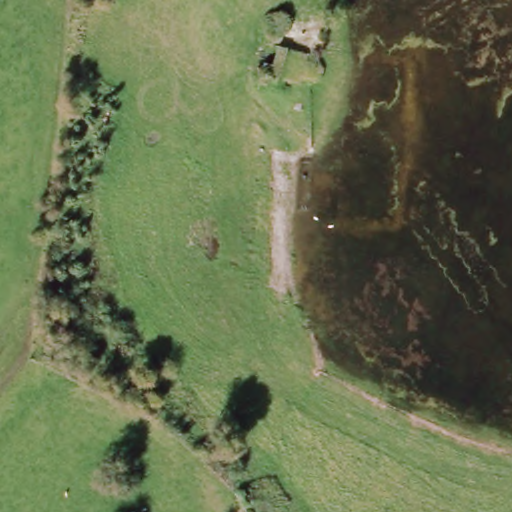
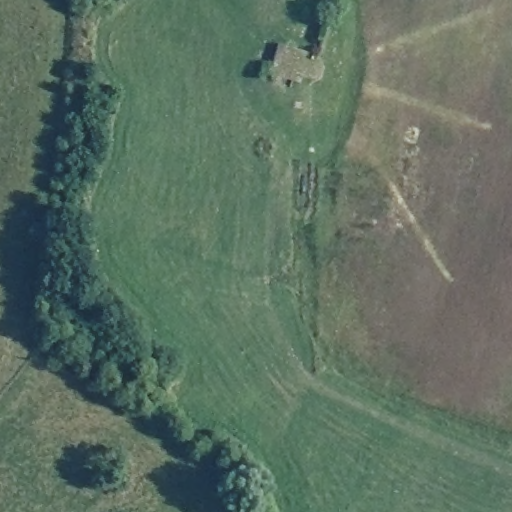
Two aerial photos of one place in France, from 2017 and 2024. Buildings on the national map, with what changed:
unchanged [(278,73),(285,44),(315,53),(315,61),(320,62),(319,75),(308,74),(307,81),(278,73)]

